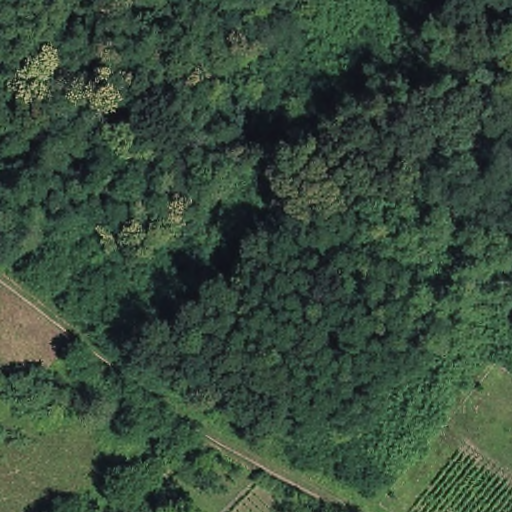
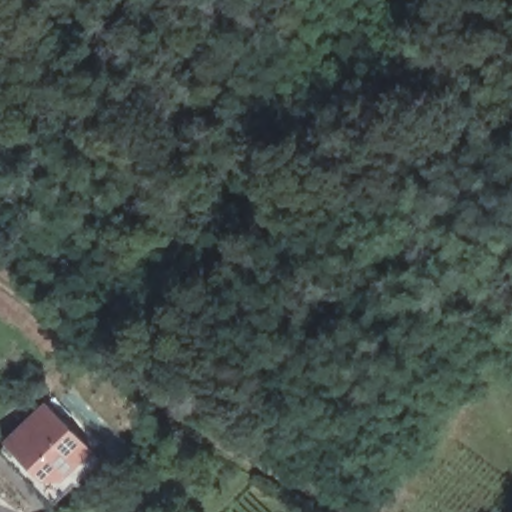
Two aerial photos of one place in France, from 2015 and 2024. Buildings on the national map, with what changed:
new [(64,481),(42,479),(5,443),(45,402),(95,453),(64,481)]

